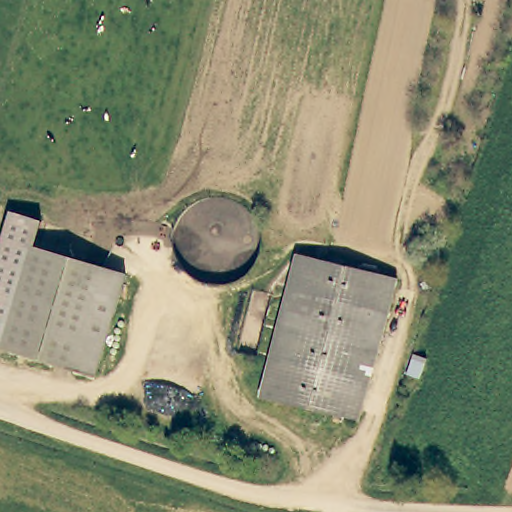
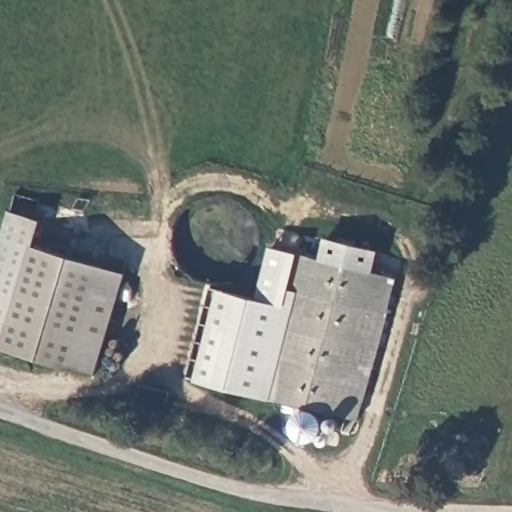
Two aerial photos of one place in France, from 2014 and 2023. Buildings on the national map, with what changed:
unchanged [(0,249),(13,210),(45,220),(38,244),(127,275),(94,375),(0,344),(0,249)]
new [(375,273),(320,258),(326,236),(380,250),(375,273)]
new [(262,395),(196,380),(220,290),(258,299),(271,245),(300,253),(262,395)]
unchanged [(360,421),(262,395),(300,253),(398,280),(360,421)]

